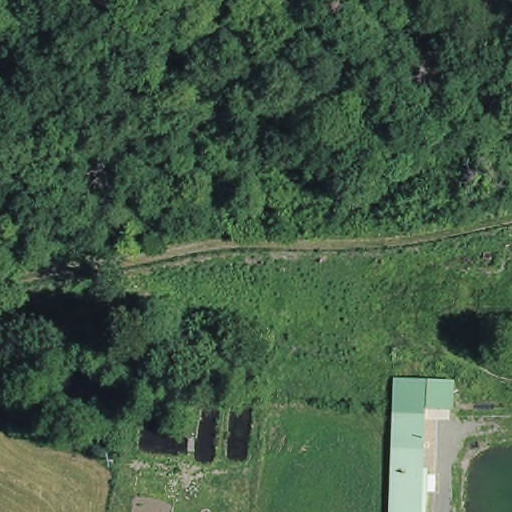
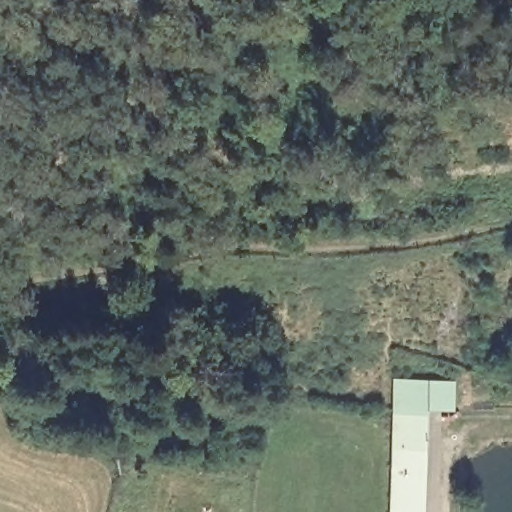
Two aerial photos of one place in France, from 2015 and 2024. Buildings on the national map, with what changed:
unchanged [(393,379),(456,381),(455,410),(429,411),(424,512),(388,512),(393,409),(393,379)]

